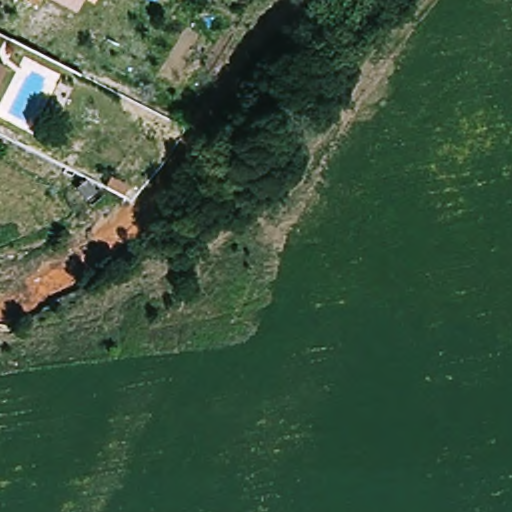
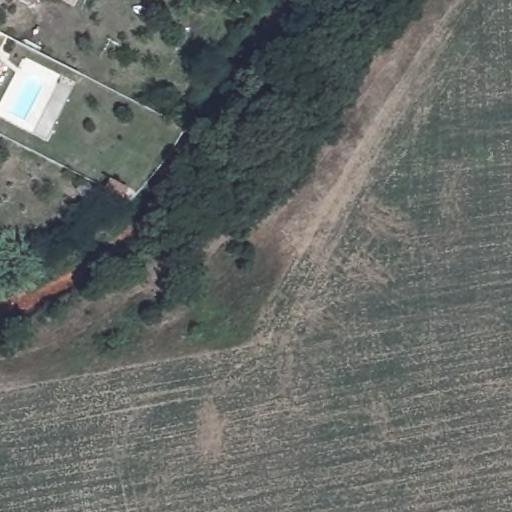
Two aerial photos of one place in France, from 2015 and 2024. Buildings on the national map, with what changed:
unchanged [(76,8),(61,0),(80,0),(76,8)]
unchanged [(0,83),(0,68),(7,72),(0,83)]
unchanged [(91,196),(97,190),(104,198),(91,208),(76,191),(83,185),(91,196)]

